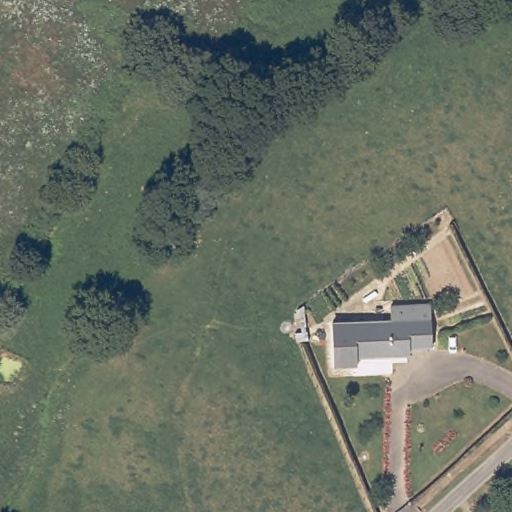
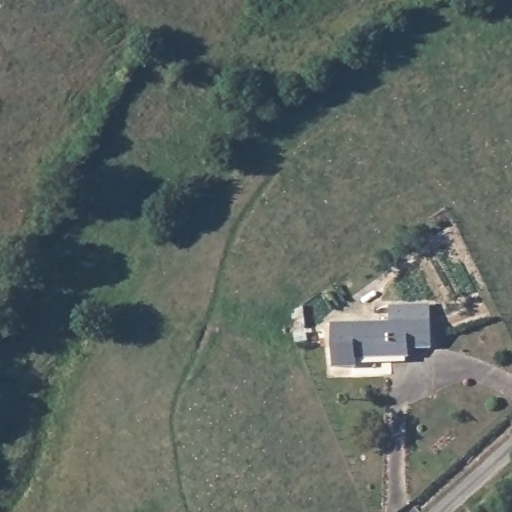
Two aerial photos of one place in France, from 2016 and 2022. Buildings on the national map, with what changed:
unchanged [(428,304),(428,343),(403,344),(403,353),(352,354),(352,362),(331,363),(330,322),(388,319),(387,305),(404,304),(428,304)]

